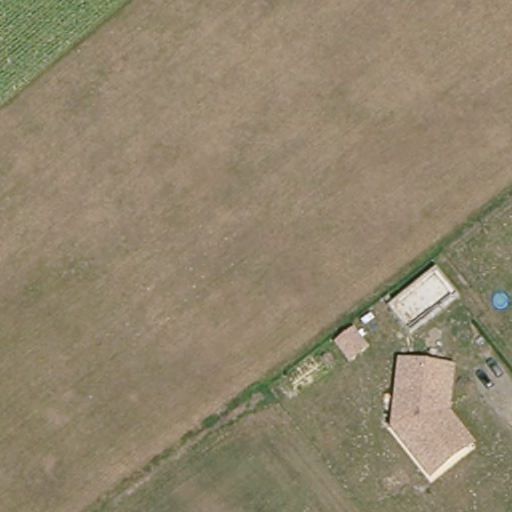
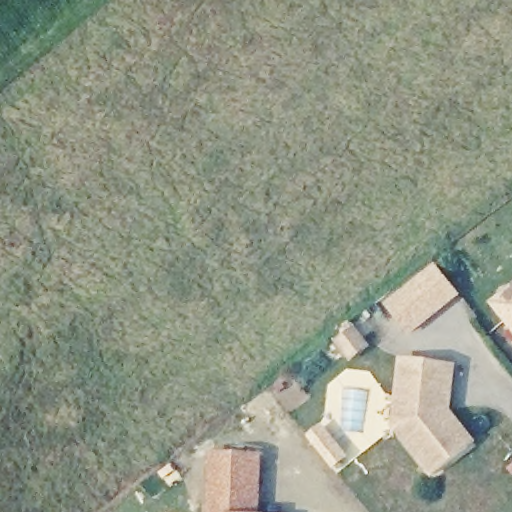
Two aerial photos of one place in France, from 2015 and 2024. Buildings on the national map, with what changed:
new [(385,303),(435,262),(461,295),(410,335),(385,303)]
new [(512,290),(512,329),(492,306),(512,290)]
unchanged [(354,326),(370,347),(350,363),(334,340),(354,326)]
unchanged [(430,382),(434,382),(431,405),(464,445),(429,475),(391,427),(401,359),(432,364),(430,382)]
unchanged [(451,367),(446,412),(469,441),(464,445),(431,405),(434,382),(430,382),(432,364),(451,367)]
new [(262,453),(261,512),(207,512),(208,451),(262,453)]

